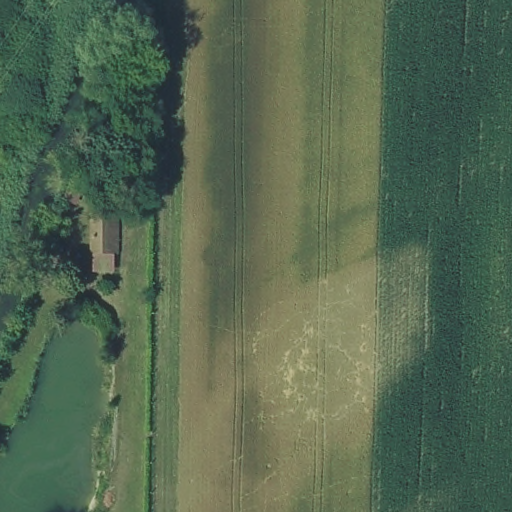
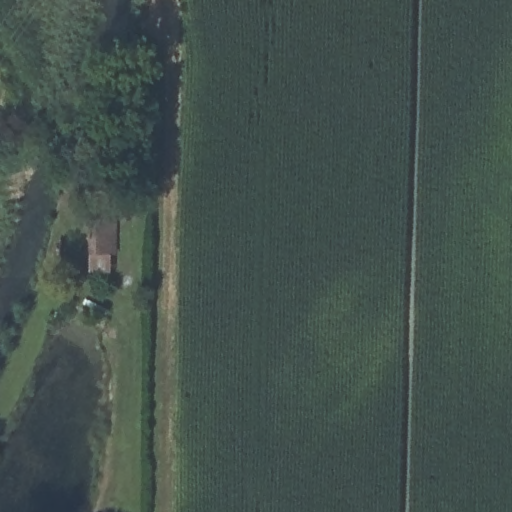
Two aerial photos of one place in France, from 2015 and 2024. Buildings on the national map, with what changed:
unchanged [(85,258),(86,192),(123,198),(124,257),(85,258)]

